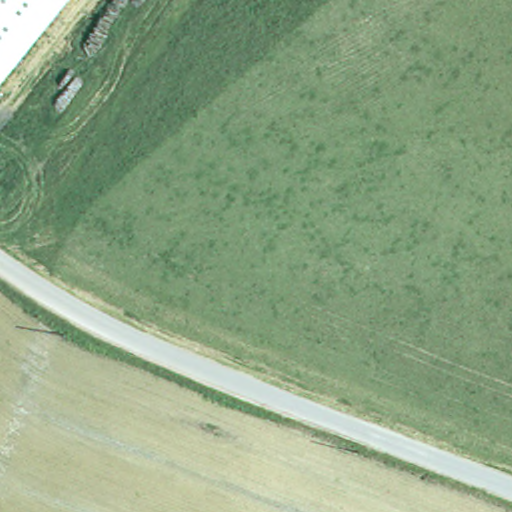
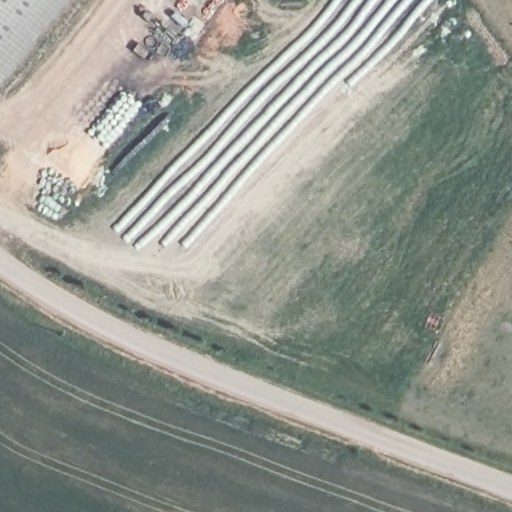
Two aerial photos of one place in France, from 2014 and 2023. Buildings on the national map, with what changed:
unchanged [(0,81),(0,0),(66,0),(0,81)]

